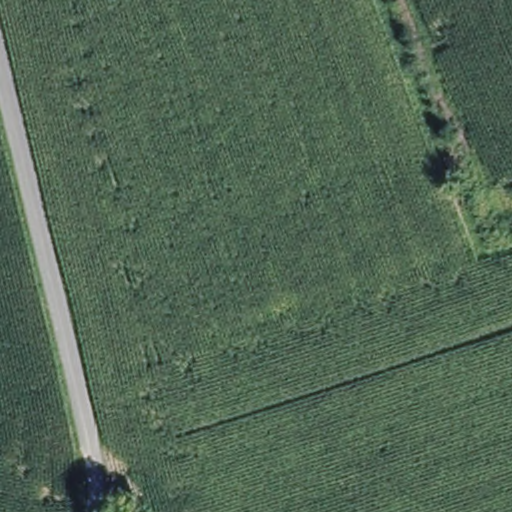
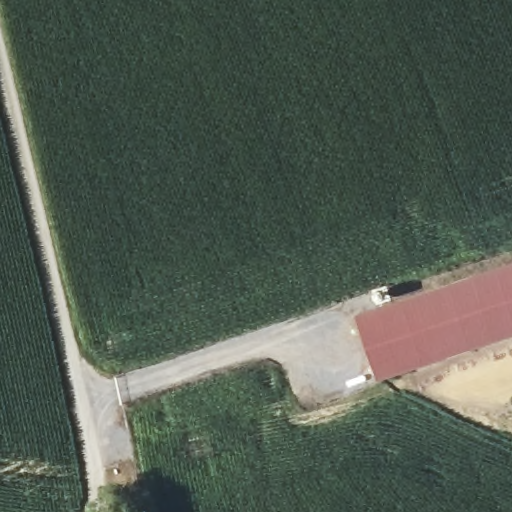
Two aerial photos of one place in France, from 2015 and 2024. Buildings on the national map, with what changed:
new [(356,317),(512,264),(512,337),(378,383),(356,317)]

